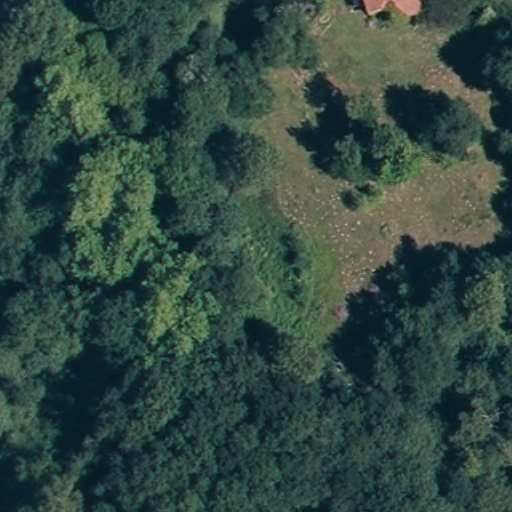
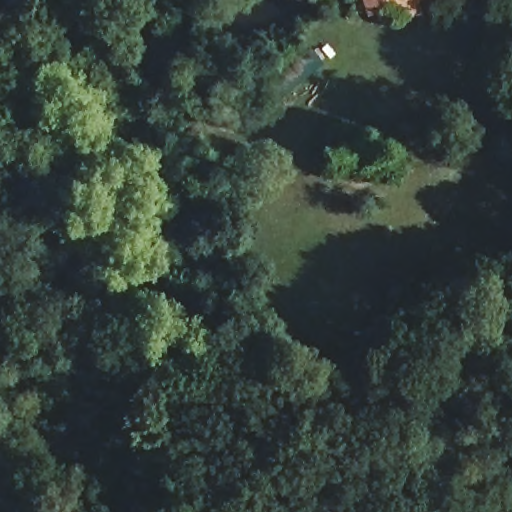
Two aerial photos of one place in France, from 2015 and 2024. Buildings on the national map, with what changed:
unchanged [(409,15),(407,7),(369,16),(366,0),(443,0),(444,6),(409,15)]

